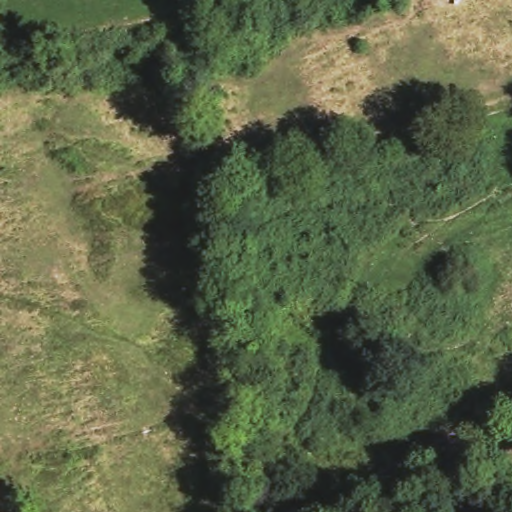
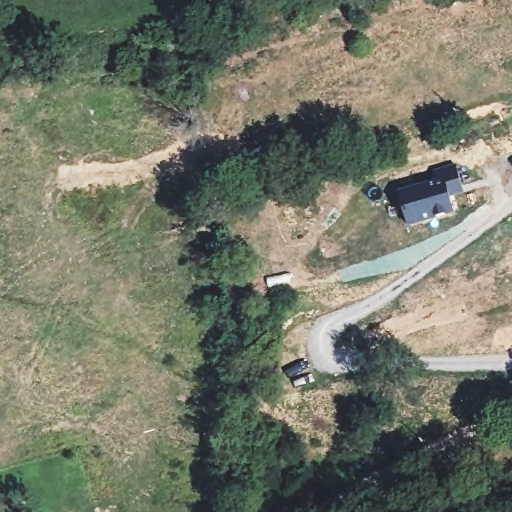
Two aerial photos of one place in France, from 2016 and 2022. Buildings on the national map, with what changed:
new [(437,185),(434,175),(455,167),(462,187),(465,194),(451,199),(456,214),(410,230),(400,197),(437,185)]

